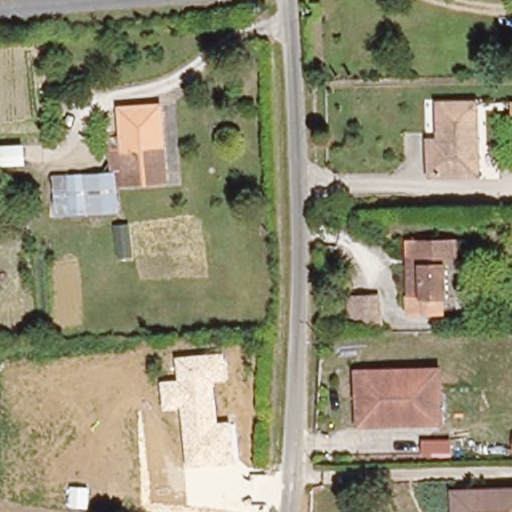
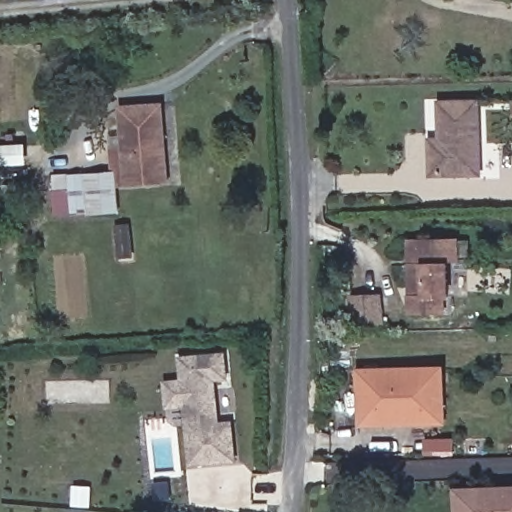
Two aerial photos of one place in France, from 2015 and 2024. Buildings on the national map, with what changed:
unchanged [(168,183),(122,188),(124,172),(114,172),(120,211),(49,218),(48,170),(104,171),(106,133),(115,131),(114,105),(161,101),(168,183)]
unchanged [(479,178),(428,178),(428,134),(437,134),(437,101),(477,101),(479,178)]
unchanged [(464,262),(451,262),(451,298),(443,299),(443,311),(407,312),(406,263),(405,242),(417,242),(464,241),(464,262)]
unchanged [(372,292),(371,321),(342,321),(342,292),(372,292)]
unchanged [(230,380),(217,381),(220,423),(235,422),(237,462),(190,466),(185,408),(165,409),(163,382),(182,379),(180,357),(228,353),(230,380)]
unchanged [(358,428),(358,370),(442,369),(443,429),(421,429),(387,428),(358,428)]
unchanged [(450,480),(512,480),(512,512),(450,512),(450,480)]

